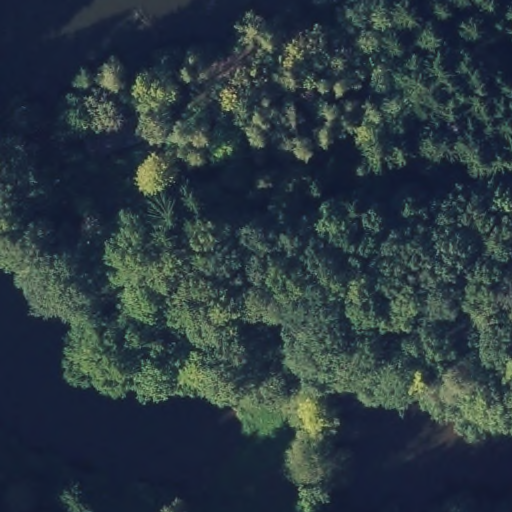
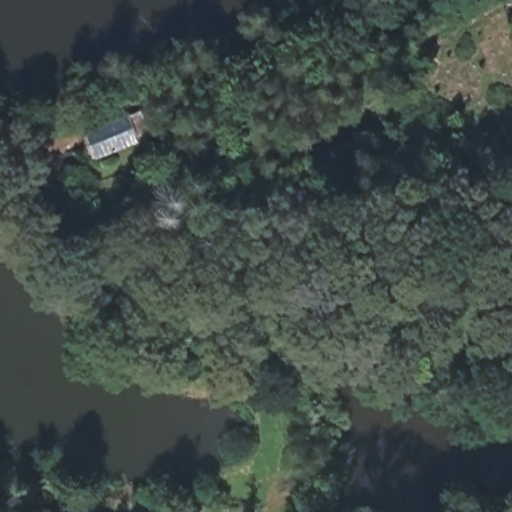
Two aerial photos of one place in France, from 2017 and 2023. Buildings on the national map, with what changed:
unchanged [(85,121),(141,106),(150,132),(91,150),(85,121)]
unchanged [(85,510),(92,512),(85,512),(85,510)]

